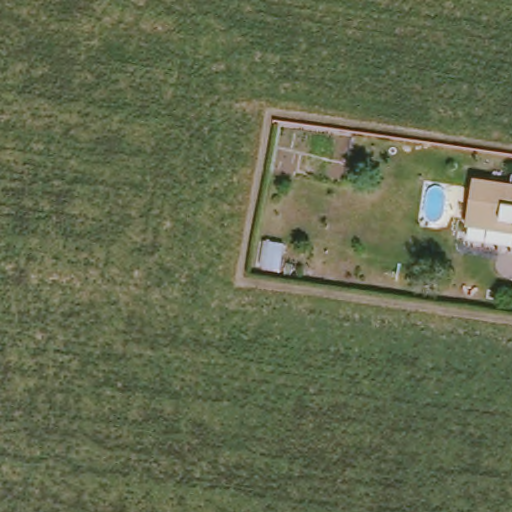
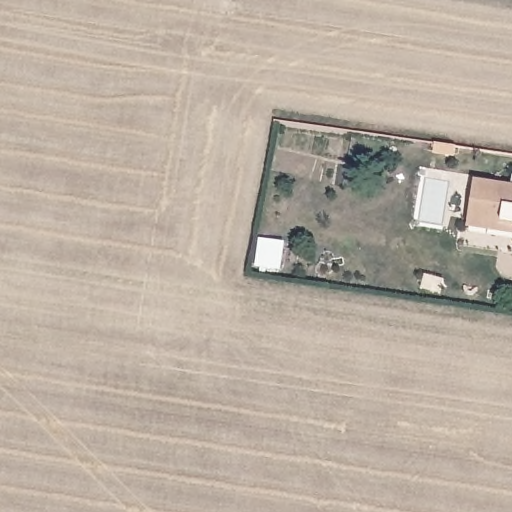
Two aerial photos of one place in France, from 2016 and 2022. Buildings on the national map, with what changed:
unchanged [(468,182),(512,187),(512,229),(462,224),(468,182)]
unchanged [(512,229),(512,249),(510,249),(512,229)]

